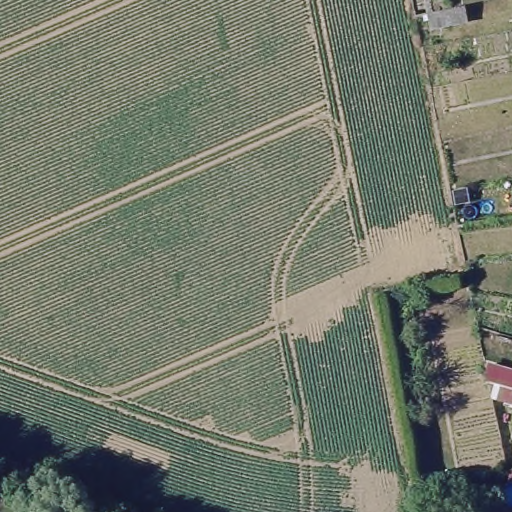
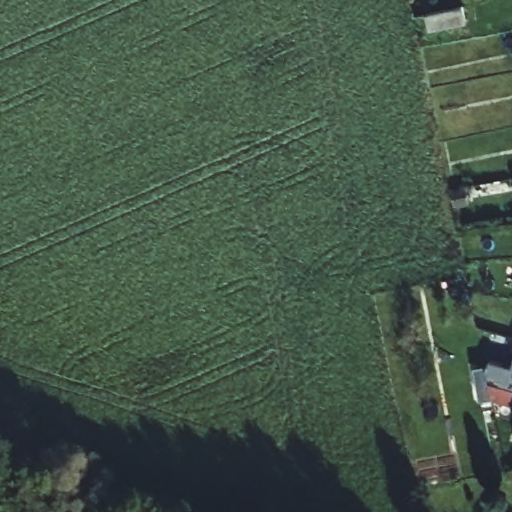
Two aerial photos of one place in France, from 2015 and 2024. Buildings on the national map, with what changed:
unchanged [(465,5),(467,20),(432,28),(429,13),(465,5)]
unchanged [(489,378),(486,365),(512,373),(512,385),(489,378)]

